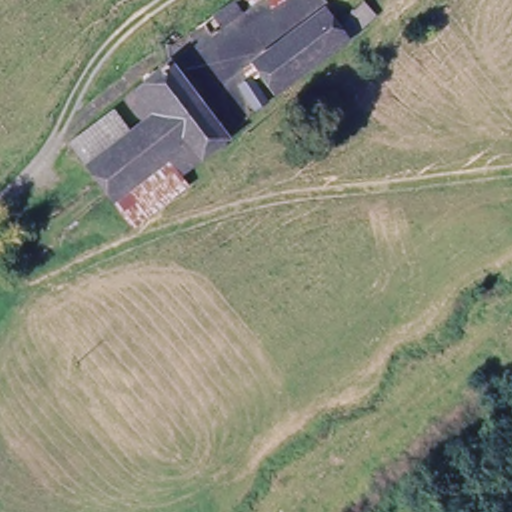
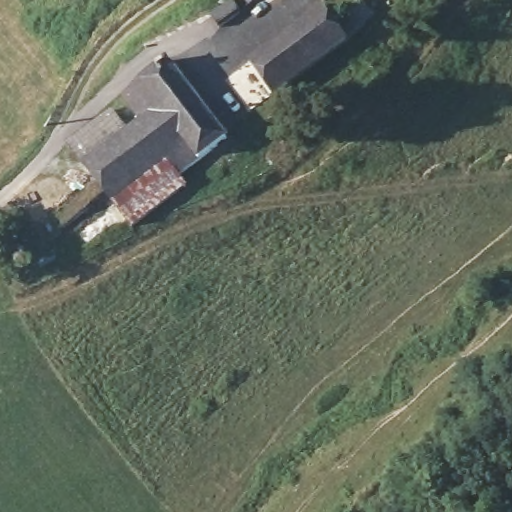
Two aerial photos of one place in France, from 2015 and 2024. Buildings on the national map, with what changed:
unchanged [(242,7),(235,0),(253,0),(242,7)]
unchanged [(223,6),(232,16),(209,32),(199,24),(223,6)]
unchanged [(348,44),(275,101),(248,70),(324,9),(348,44)]
unchanged [(66,156),(111,119),(128,137),(139,127),(123,102),(170,66),(232,140),(182,180),(191,190),(135,235),(66,156)]

